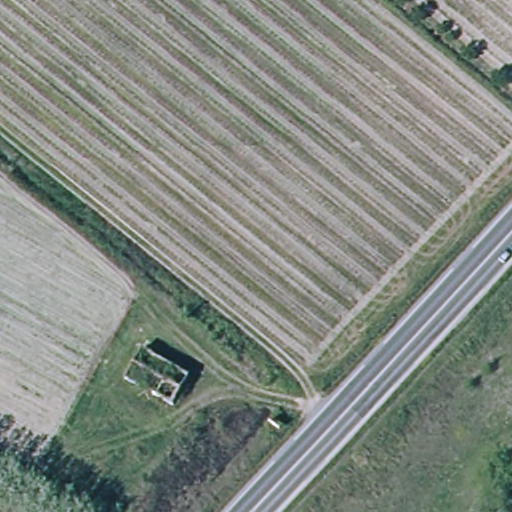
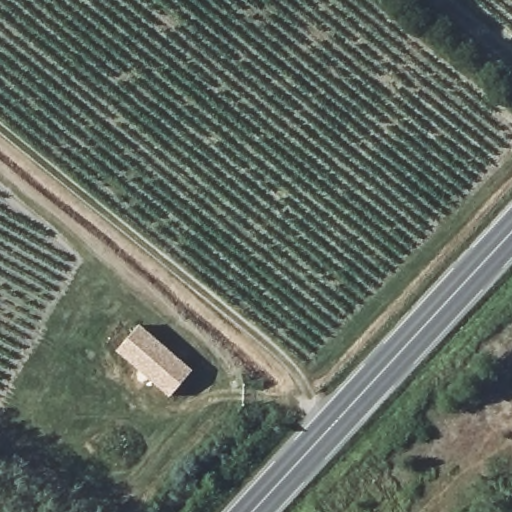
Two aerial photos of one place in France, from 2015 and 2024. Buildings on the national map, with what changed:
new [(193,371),(169,398),(115,352),(139,325),(193,371)]

